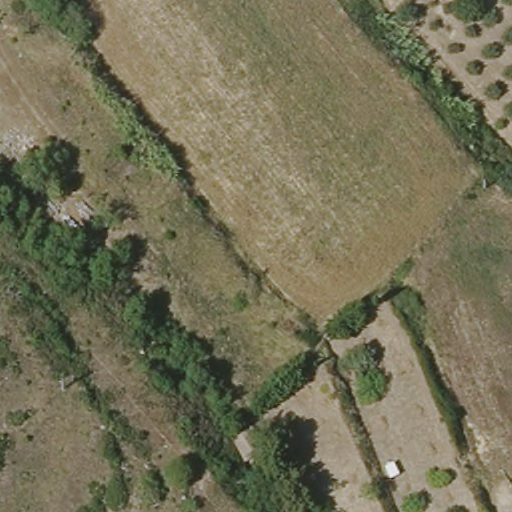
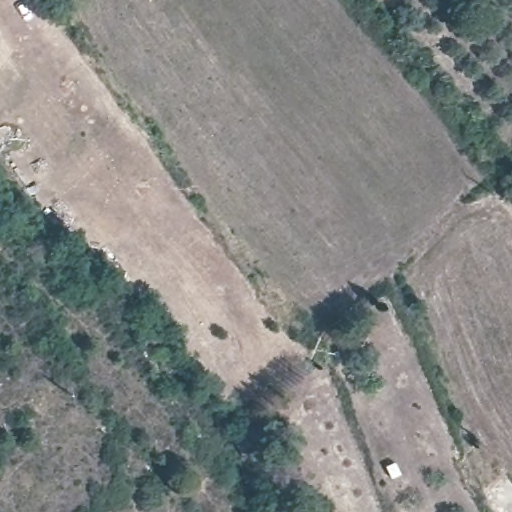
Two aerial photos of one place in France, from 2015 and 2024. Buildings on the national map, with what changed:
unchanged [(241,462),(230,437),(255,425),(267,449),(241,462)]

